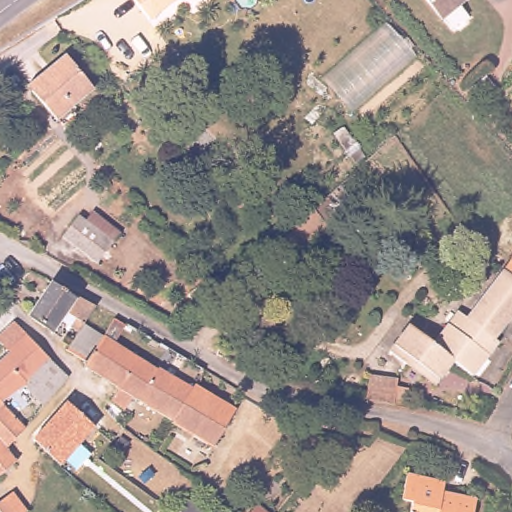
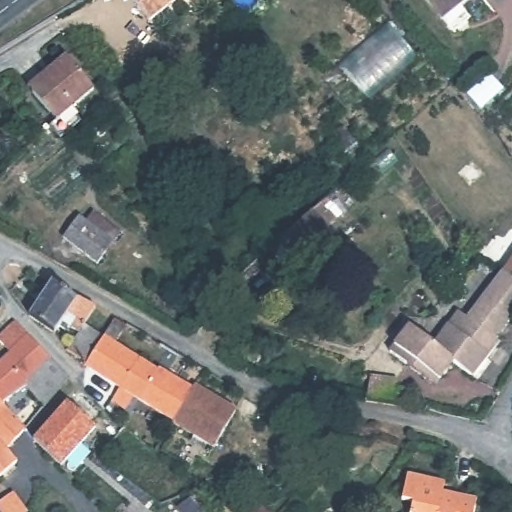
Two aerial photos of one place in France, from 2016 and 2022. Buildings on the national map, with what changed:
unchanged [(167,9),(151,22),(134,0),(179,0),(167,9)]
unchanged [(448,16),(435,0),(468,0),(448,16)]
unchanged [(185,18),(189,15),(193,21),(189,24),(185,18)]
unchanged [(70,57),(95,85),(57,117),(34,87),(70,57)]
unchanged [(334,142),(345,134),(369,163),(357,174),(334,142)]
unchanged [(335,227),(306,252),(292,231),(320,209),(335,227)]
unchanged [(105,260),(95,254),(70,234),(86,214),(111,232),(120,239),(105,260)]
unchanged [(480,245),(492,254),(487,261),(475,252),(480,245)]
unchanged [(463,312),(466,315),(467,316),(506,267),(512,260),(512,315),(497,336),(501,339),(475,373),(457,358),(437,343),(453,323),(463,312)]
unchanged [(90,320),(75,312),(63,330),(36,313),(59,279),(85,297),(85,295),(102,302),(90,320)]
unchanged [(114,391),(119,378),(92,362),(121,315),(131,322),(120,340),(163,367),(145,395),(140,392),(133,406),(114,391)]
unchanged [(0,476),(0,363),(15,350),(4,336),(22,320),(56,353),(32,383),(6,401),(32,425),(15,445),(25,459),(0,476)]
unchanged [(409,363),(392,351),(412,325),(437,343),(457,358),(442,377),(437,384),(409,363)]
unchanged [(171,370),(199,386),(179,417),(145,395),(163,367),(177,346),(185,351),(171,370)]
unchanged [(56,353),(75,373),(48,403),(32,383),(56,353)]
unchanged [(367,377),(375,379),(395,382),(393,389),(406,391),(403,408),(363,402),(367,377)]
unchanged [(244,407),(219,445),(177,419),(179,417),(199,386),(201,382),(244,407)]
unchanged [(29,450),(67,406),(95,428),(55,480),(25,453),(29,450)]
unchanged [(323,485),(315,477),(328,462),(337,469),(323,485)]
unchanged [(470,512),(411,512),(429,495),(420,486),(440,467),(466,496),(460,502),(470,512)]
unchanged [(24,512),(0,512),(0,501),(11,494),(24,512)]
unchanged [(268,512),(237,512),(250,497),(268,512)]
unchanged [(155,507),(150,512),(136,512),(147,500),(155,507)]

